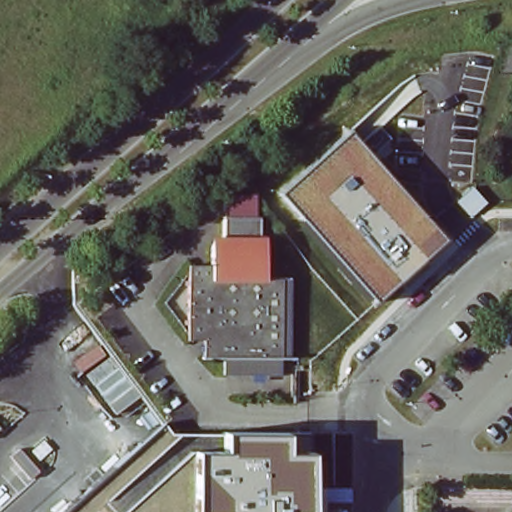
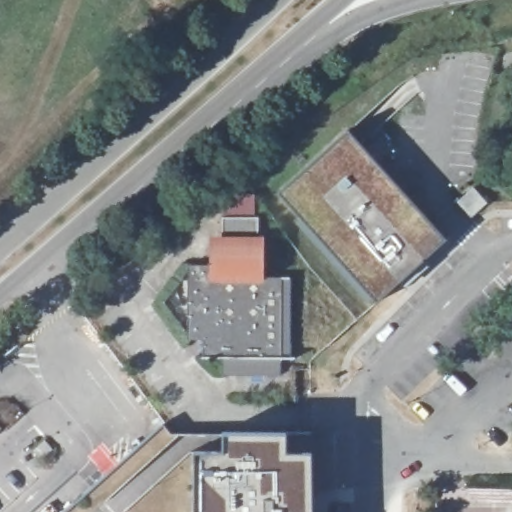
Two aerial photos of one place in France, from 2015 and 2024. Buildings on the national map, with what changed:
unchanged [(348,134),(451,238),(384,304),(281,200),(348,134)]
unchanged [(204,231),(256,231),(256,258),(204,258),(204,231)]
unchanged [(256,258),(256,272),(284,273),(284,353),(275,352),(274,371),(218,370),(218,354),(195,354),(196,336),(178,335),(178,258),(204,258),(256,258)]
unchanged [(171,434),(224,434),(286,434),(287,452),(312,452),(313,512),(65,512),(164,423),(171,434)]

